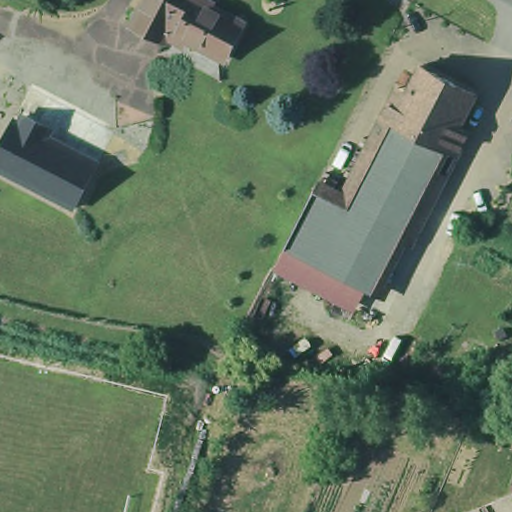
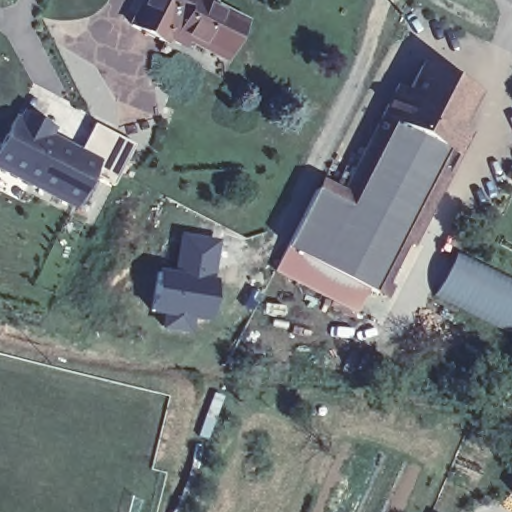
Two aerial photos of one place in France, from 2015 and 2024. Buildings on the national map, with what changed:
unchanged [(171,50),(138,34),(154,0),(198,0),(196,3),(207,8),(208,6),(245,25),(226,64),(184,44),(186,40),(178,37),(171,50)]
unchanged [(457,159),(446,180),(371,142),(393,100),(397,92),(407,97),(421,69),(423,70),(424,68),(475,94),(474,96),(476,97),(459,131),(469,136),(457,159)]
unchanged [(0,172),(0,151),(22,108),(61,128),(59,134),(105,162),(78,211),(0,172)]
unchanged [(413,246),(404,242),(376,298),(366,294),(286,252),(295,233),(314,195),(339,207),(371,142),(446,180),(413,246)]
new [(156,268),(171,271),(178,232),(216,239),(206,322),(193,321),(186,335),(163,330),(163,317),(149,314),(156,268)]
new [(436,294),(458,251),(512,279),(512,333),(436,294)]
unchanged [(286,252),(366,294),(356,316),(274,275),(286,252)]

